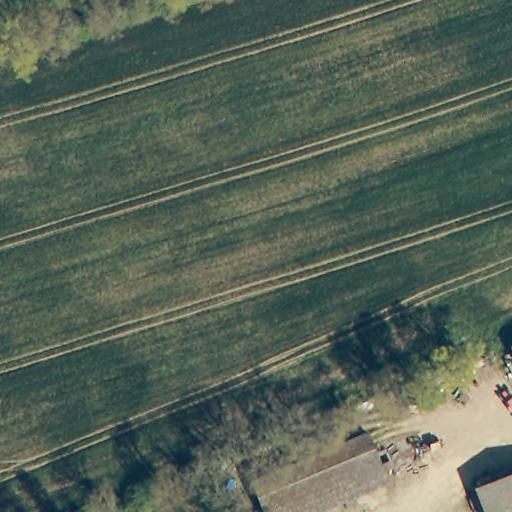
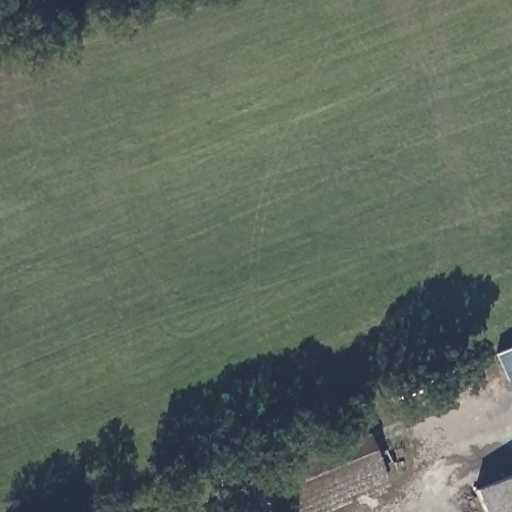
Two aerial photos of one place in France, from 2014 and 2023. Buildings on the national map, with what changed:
unchanged [(291,512),(264,512),(252,482),(367,433),(384,473),(291,512)]
unchanged [(512,479),(512,512),(482,512),(475,495),(512,479)]

